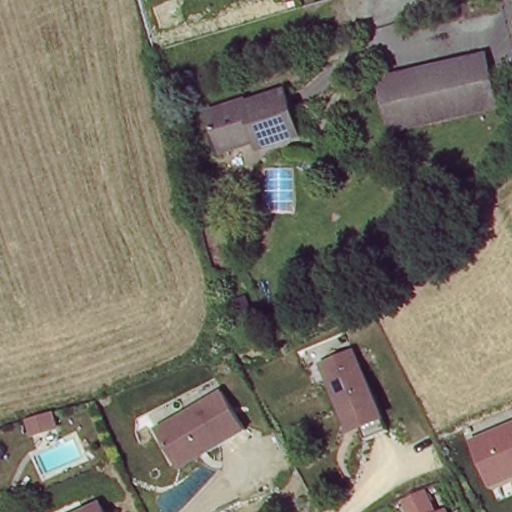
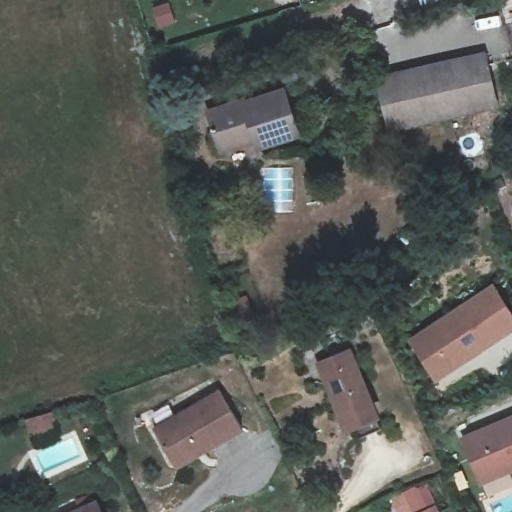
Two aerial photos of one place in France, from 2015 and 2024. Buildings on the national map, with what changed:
unchanged [(392,125),(382,70),(402,65),(402,60),(470,45),(487,40),(492,64),(500,101),(392,125)]
unchanged [(207,107),(283,86),(300,135),(257,147),(255,139),(220,149),(207,107)]
new [(493,288),(512,317),(512,326),(437,376),(413,340),(493,288)]
unchanged [(348,347),(378,418),(342,433),(313,362),(348,347)]
unchanged [(214,389),(240,433),(179,467),(152,425),(214,389)]
unchanged [(480,485),(462,436),(512,416),(512,473),(480,485)]
unchanged [(90,501),(96,512),(67,512),(90,501)]
unchanged [(432,510),(432,512),(428,512),(432,510)]

